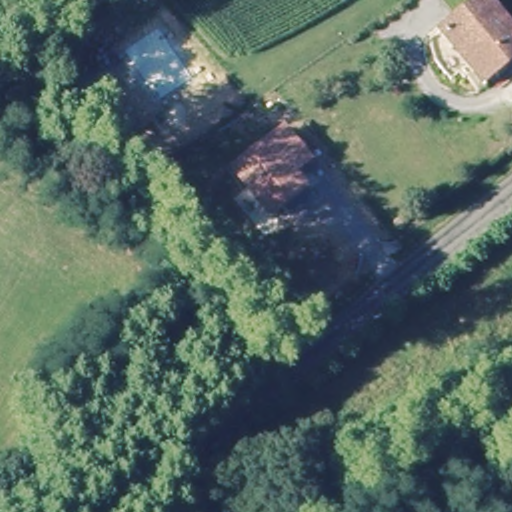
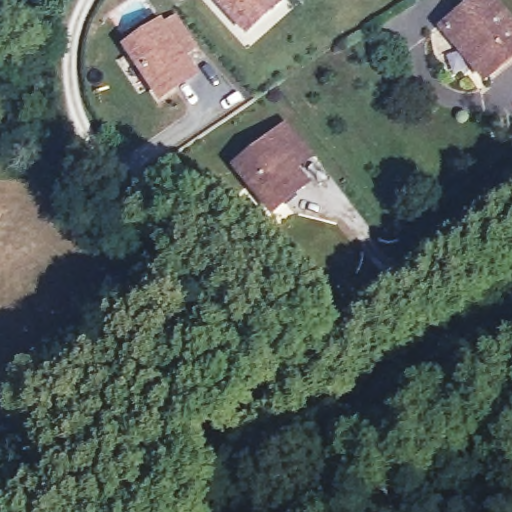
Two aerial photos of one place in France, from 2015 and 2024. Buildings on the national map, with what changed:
new [(209,0),(284,0),(288,4),(247,40),(209,0)]
unchanged [(490,2),(512,30),(512,65),(486,86),(446,37),(490,2)]
new [(119,47),(162,21),(164,24),(176,17),(198,50),(186,58),(201,80),(159,107),(119,47)]
unchanged [(229,168),(285,124),(315,160),(300,173),(311,187),(271,220),(229,168)]
new [(166,189),(162,184),(150,174),(164,157),(176,169),(181,173),(166,189)]

